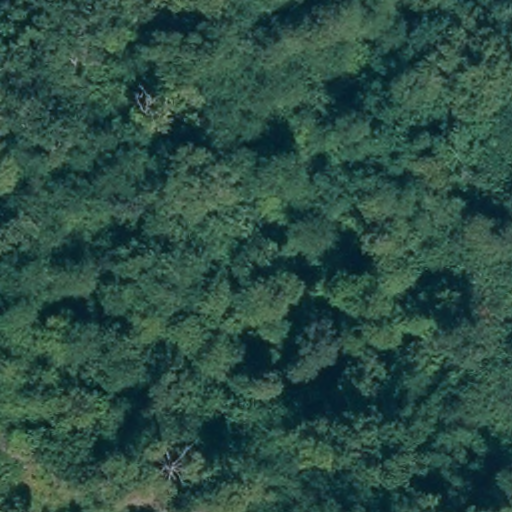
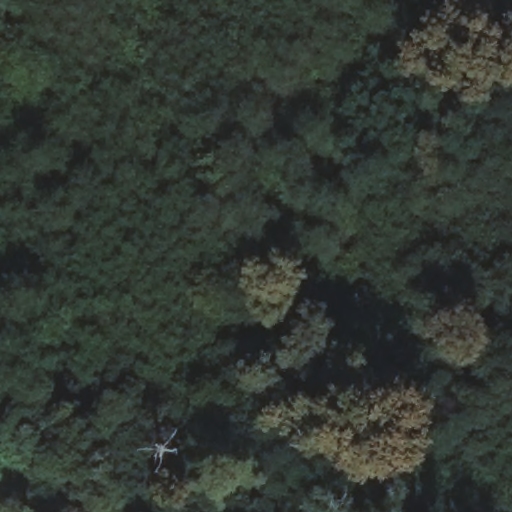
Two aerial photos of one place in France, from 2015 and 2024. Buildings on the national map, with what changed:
[]

